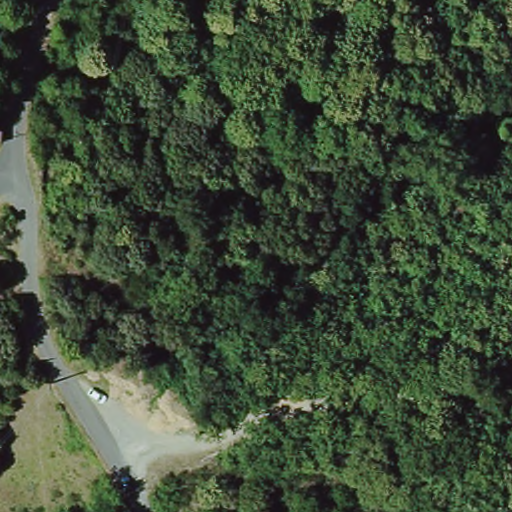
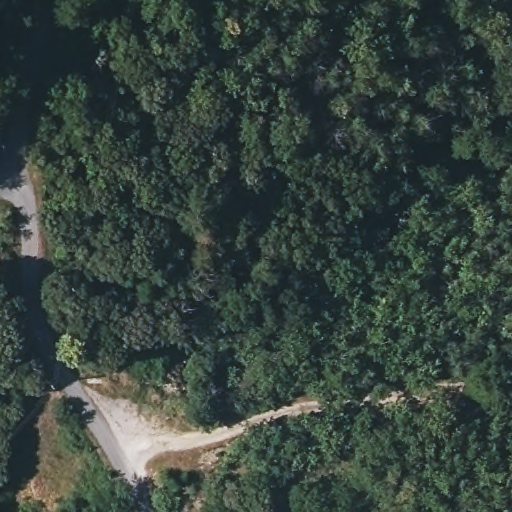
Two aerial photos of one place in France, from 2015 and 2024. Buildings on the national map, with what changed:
unchanged [(7,141),(5,145),(0,145),(0,119),(7,120),(7,141)]

